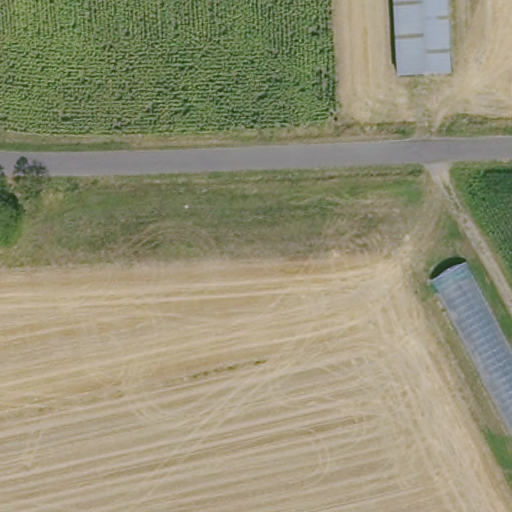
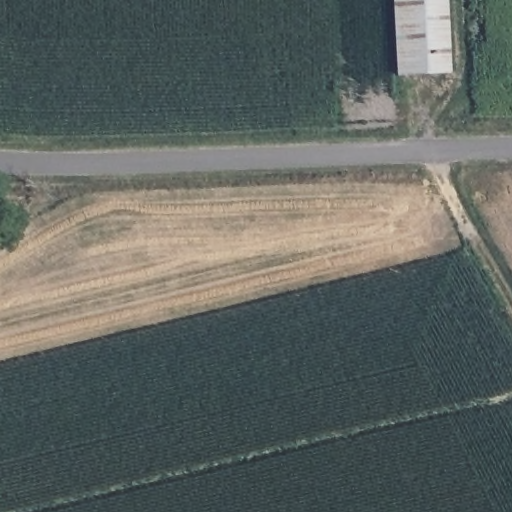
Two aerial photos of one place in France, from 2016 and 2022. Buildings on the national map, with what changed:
unchanged [(400,76),(396,0),(449,0),(452,75),(400,76)]
demolished [(438,279),(468,263),(512,348),(512,423),(438,279)]

